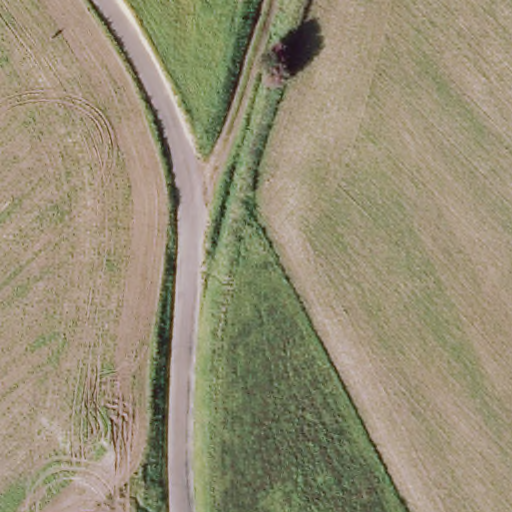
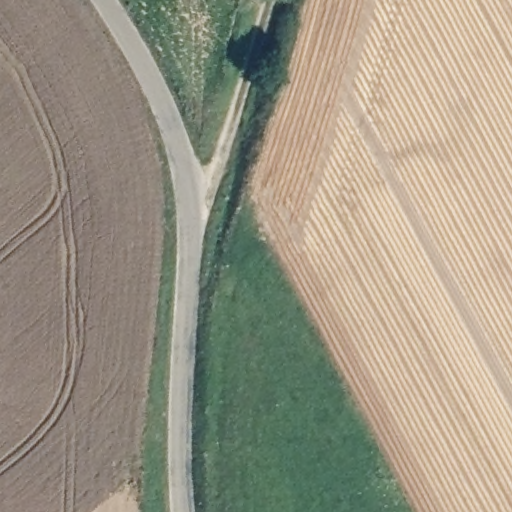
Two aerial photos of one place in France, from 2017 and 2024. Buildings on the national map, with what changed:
[]

